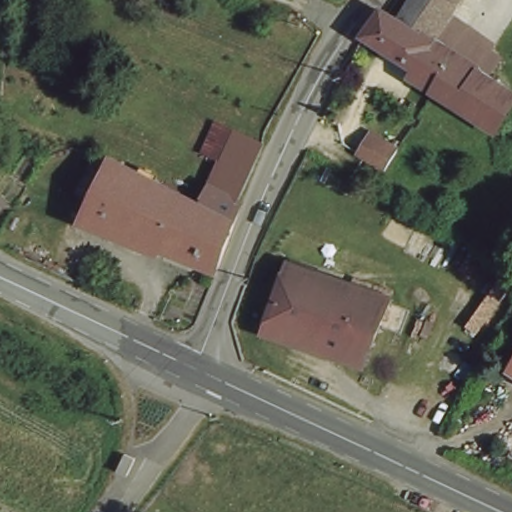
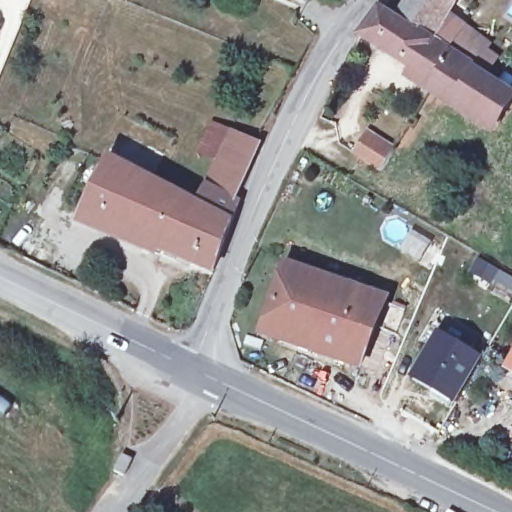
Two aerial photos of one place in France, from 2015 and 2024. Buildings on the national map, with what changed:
unchanged [(430,56),(390,30),(409,0),(461,0),(430,56)]
unchanged [(358,45),(373,21),(433,60),(418,85),(358,45)]
unchanged [(443,35),(494,67),(480,88),(430,56),(443,35)]
unchanged [(433,60),(507,108),(489,133),(418,85),(433,60)]
unchanged [(364,128),(390,143),(387,149),(378,164),(352,148),(360,133),(364,128)]
unchanged [(107,160),(164,183),(200,198),(230,137),(259,150),(232,208),(237,212),(214,276),(138,244),(82,220),(107,160)]
unchanged [(382,300),(368,341),(367,346),(360,367),(265,337),(277,301),(280,293),(289,268),(382,300)]
new [(479,357),(452,405),(404,377),(434,330),(479,357)]

